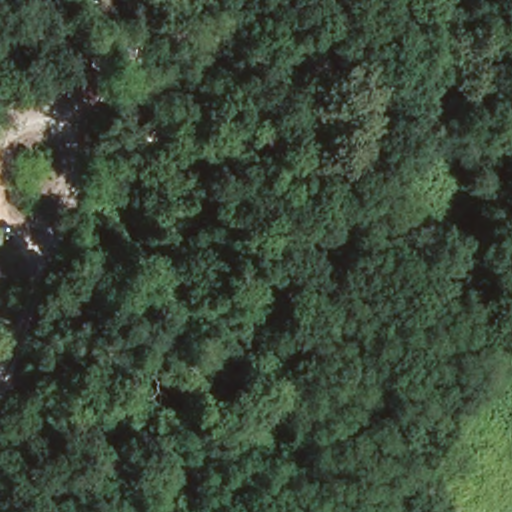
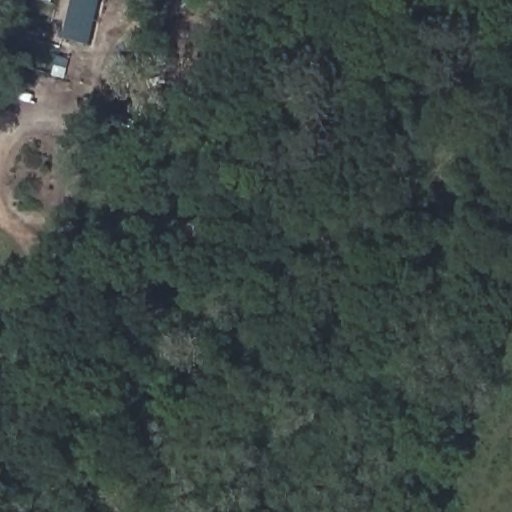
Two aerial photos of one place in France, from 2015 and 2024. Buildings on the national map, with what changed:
new [(93,45),(65,40),(73,0),(103,0),(93,45)]
unchanged [(435,512),(416,512),(418,507),(435,512)]

